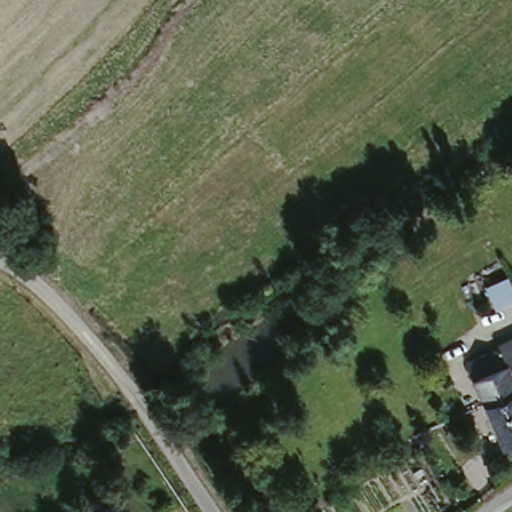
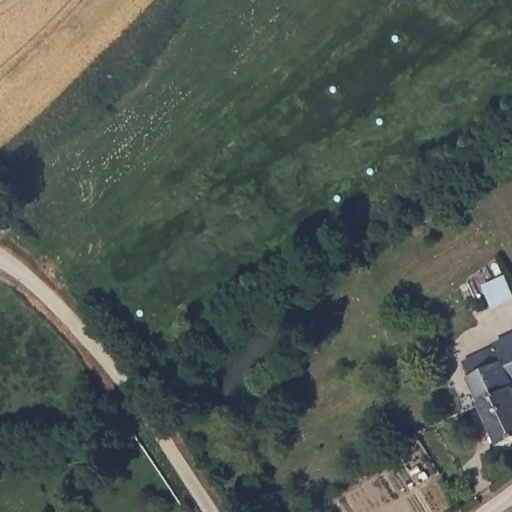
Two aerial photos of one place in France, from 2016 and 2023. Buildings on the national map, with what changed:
unchanged [(465,376),(508,362),(499,342),(512,336),(512,456),(500,460),(472,392),(465,376)]

